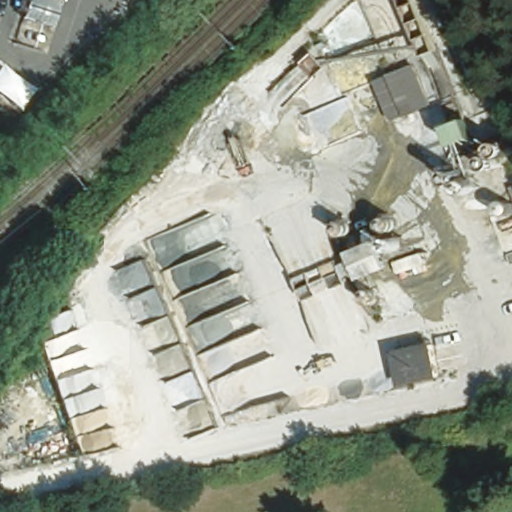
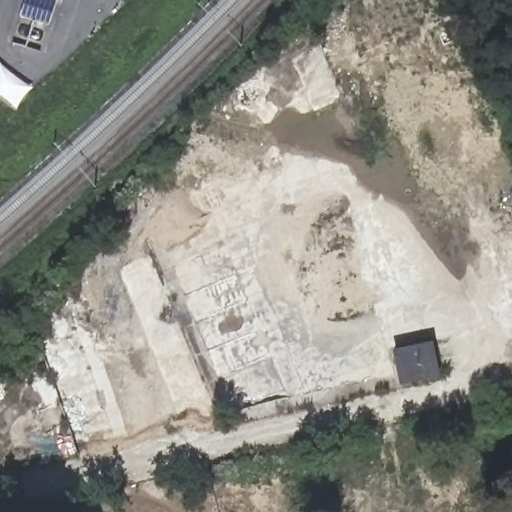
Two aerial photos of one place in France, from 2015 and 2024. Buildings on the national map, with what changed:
unchanged [(28,0),(59,0),(51,25),(24,16),(28,0)]
demolished [(424,105),(389,116),(377,80),(411,68),(424,105)]
unchanged [(430,340),(436,368),(406,373),(400,345),(430,340)]

